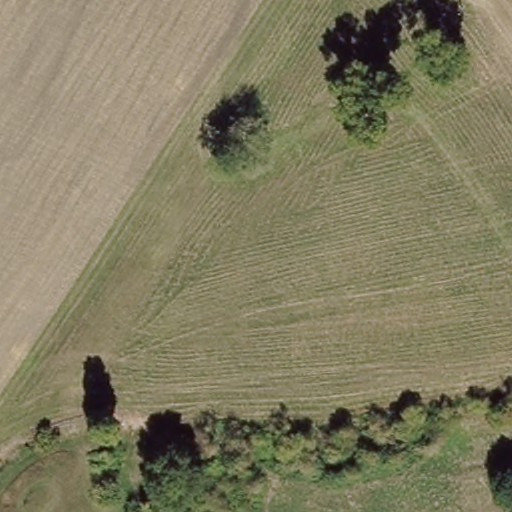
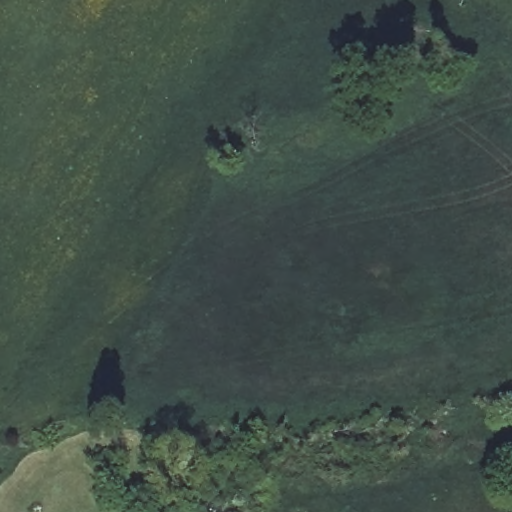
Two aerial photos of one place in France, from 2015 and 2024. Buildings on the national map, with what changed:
[]

